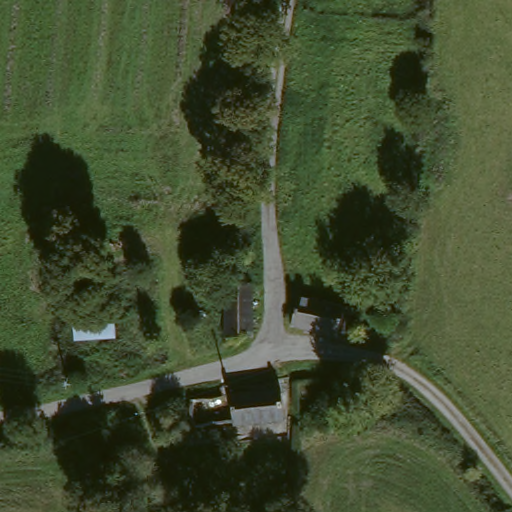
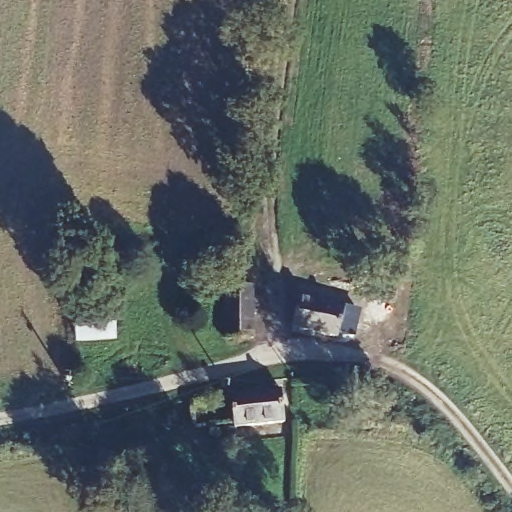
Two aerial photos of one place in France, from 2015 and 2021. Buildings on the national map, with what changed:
unchanged [(95,307),(92,286),(141,278),(144,301),(95,307)]
unchanged [(192,315),(218,317),(221,290),(251,291),(244,348),(189,345),(192,315)]
unchanged [(290,297),(354,314),(352,330),(345,337),(329,333),(325,342),(282,328),(290,297)]
unchanged [(79,315),(106,316),(106,343),(61,343),(60,316),(79,315)]
unchanged [(284,390),(287,425),(229,429),(226,398),(284,390)]

